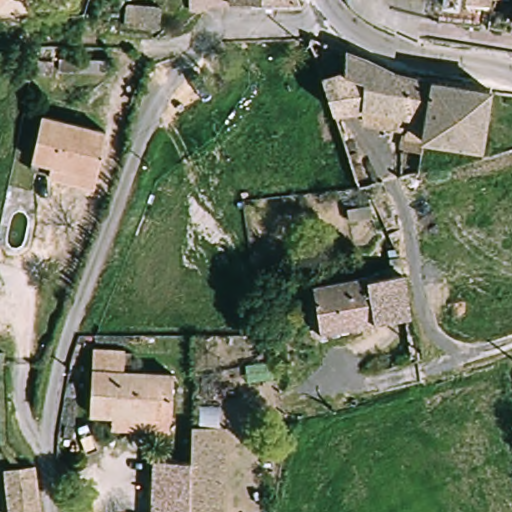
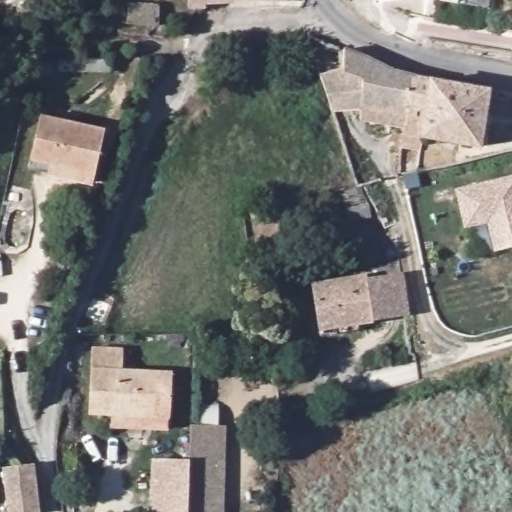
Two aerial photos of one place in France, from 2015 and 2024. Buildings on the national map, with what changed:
unchanged [(195,18),(182,18),(182,0),(223,0),(224,8),(195,10),(195,18)]
unchanged [(224,8),(223,0),(288,0),(289,3),(224,8)]
unchanged [(454,1),(443,0),(487,0),(486,8),(454,1)]
unchanged [(127,4),(162,6),(160,26),(125,24),(127,4)]
unchanged [(398,129),(352,123),(353,114),(324,111),(315,81),(336,74),(340,53),(354,58),(365,63),(388,75),(414,80),(428,82),(436,84),(486,93),(475,148),(417,139),(415,153),(414,154),(394,151),(397,135),(398,129)]
unchanged [(107,59),(106,86),(64,86),(63,61),(107,59)]
unchanged [(31,172),(42,121),(103,133),(92,185),(31,172)]
new [(497,252),(491,223),(468,228),(459,190),(512,180),(512,249),(497,252)]
unchanged [(349,211),(364,210),(364,221),(349,221),(349,211)]
unchanged [(321,329),(314,286),(366,278),(367,282),(392,279),(402,278),(406,316),(403,317),(321,329)]
unchanged [(106,430),(106,419),(85,418),(86,354),(115,355),(114,373),(166,375),(166,421),(166,432),(106,430)]
unchanged [(190,472),(190,464),(192,426),(223,427),(218,512),(188,512),(190,472)]
unchanged [(190,472),(188,512),(152,512),(154,463),(190,464),(190,472)]
unchanged [(34,512),(6,512),(4,471),(32,474),(34,512)]

